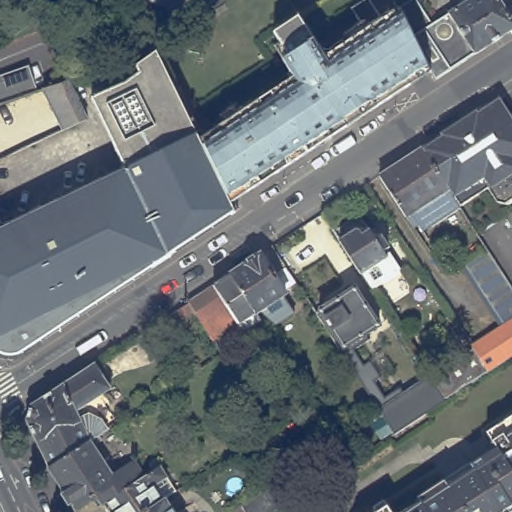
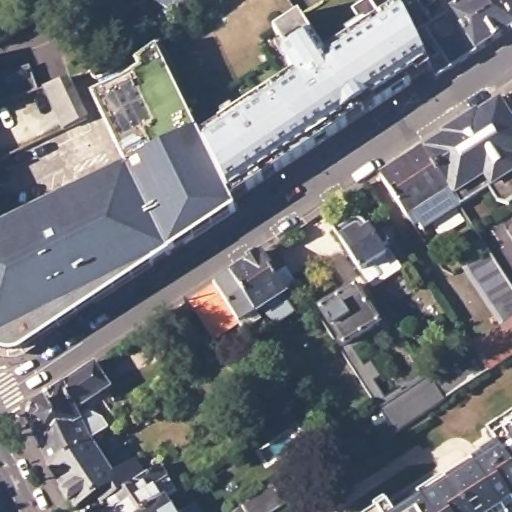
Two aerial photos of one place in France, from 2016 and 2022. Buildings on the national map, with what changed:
unchanged [(154,0),(207,0),(207,1),(185,17),(154,0)]
unchanged [(205,136),(297,75),(291,66),(298,62),(278,31),(304,14),(330,54),(369,27),(356,9),(370,0),(376,0),(386,17),(404,5),(405,6),(435,67),(298,157),(235,199),(205,136)]
unchanged [(470,0),(505,0),(512,10),(512,31),(467,60),(440,20),(470,0)]
unchanged [(415,1),(426,17),(435,11),(440,20),(467,60),(440,77),(435,67),(405,6),(415,1)]
unchanged [(0,349),(0,216),(5,225),(5,226),(116,171),(131,165),(97,95),(122,84),(126,82),(128,81),(131,79),(132,78),(134,77),(135,76),(138,74),(147,66),(142,58),(140,60),(133,64),(130,67),(127,67),(124,69),(119,62),(114,55),(132,41),(140,52),(145,57),(160,45),(205,136),(235,199),(240,209),(17,353),(1,352),(0,349)]
unchanged [(113,72),(105,75),(101,67),(104,67),(94,47),(99,44),(109,64),(110,65),(113,72)]
unchanged [(49,86),(71,78),(90,117),(68,127),(49,86)]
unchanged [(496,97),(512,122),(512,201),(507,205),(495,202),(486,189),(458,209),(419,148),(496,97)]
unchanged [(422,232),(418,227),(414,230),(377,176),(419,148),(458,209),(422,232)]
unchanged [(371,290),(360,272),(332,232),(352,219),(355,220),(356,220),(357,220),(358,221),(359,221),(360,222),(373,241),(380,237),(385,246),(380,250),(382,255),(386,253),(398,272),(371,290)]
unchanged [(477,344),(475,341),(507,321),(470,261),(491,247),(512,278),(512,354),(492,367),(477,344)]
unchanged [(265,327),(250,316),(250,317),(224,278),(264,252),(278,275),(289,291),(277,298),(273,302),(282,315),(265,327)]
unchanged [(166,316),(180,307),(205,291),(224,278),(250,317),(230,330),(219,313),(194,330),(185,316),(172,323),(166,316)]
unchanged [(324,310),(357,288),(381,325),(348,346),(324,310)]
unchanged [(240,331),(252,322),(276,359),(265,367),(240,331)]
unchanged [(446,365),(438,352),(455,340),(464,353),(477,344),(492,367),(447,396),(433,373),(446,365)]
unchanged [(117,423),(116,424),(99,435),(94,438),(54,464),(31,418),(35,403),(98,362),(113,387),(100,395),(119,422),(117,423)]
unchanged [(399,438),(394,431),(396,430),(381,407),(433,373),(447,396),(430,407),(435,415),(399,438)]
unchanged [(390,498),(395,505),(398,511),(425,494),(422,488),(447,471),(472,455),(475,457),(500,442),(489,427),(512,410),(512,512),(367,512),(380,504),(390,498)]
unchanged [(94,438),(99,435),(116,424),(147,477),(112,500),(107,503),(101,492),(79,506),(76,502),(71,500),(66,491),(69,489),(54,464),(94,438)]
unchanged [(112,500),(147,477),(165,466),(180,491),(170,497),(147,512),(118,512),(119,512),(112,500)]
unchanged [(272,483),(285,503),(271,512),(245,512),(240,505),(272,483)]
unchanged [(147,512),(170,497),(180,512),(147,512)]

